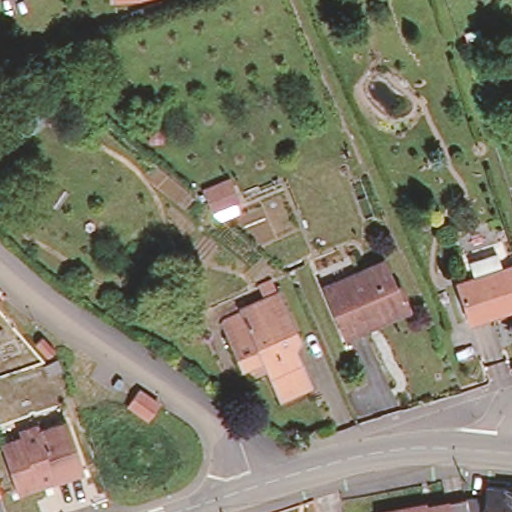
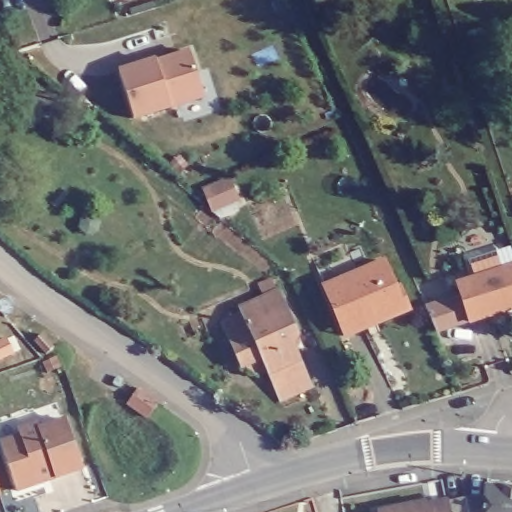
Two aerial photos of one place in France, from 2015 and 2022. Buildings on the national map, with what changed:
unchanged [(109,8),(108,0),(153,0),(153,1),(109,8)]
new [(205,99),(171,108),(172,110),(133,121),(117,68),(190,48),(205,99)]
new [(231,177),(240,206),(210,218),(199,190),(231,177)]
unchanged [(391,287),(395,285),(404,308),(341,332),(322,282),(315,265),(349,253),(355,270),(380,260),(391,287)]
unchanged [(464,271),(512,257),(512,301),(465,317),(451,275),(464,271)]
unchanged [(242,363),(236,365),(218,319),(239,312),(237,305),(277,290),(299,341),(293,343),(308,382),(274,396),(262,368),(247,374),(242,363)]
unchanged [(42,336),(55,349),(47,356),(35,342),(42,336)]
unchanged [(138,390),(159,405),(149,419),(128,404),(138,390)]
unchanged [(17,492),(0,444),(20,437),(18,431),(37,424),(40,430),(67,421),(83,469),(49,481),(38,485),(17,492)]
unchanged [(370,505),(424,494),(425,498),(465,490),(482,490),(482,479),(512,482),(512,512),(371,512),(370,505)]

